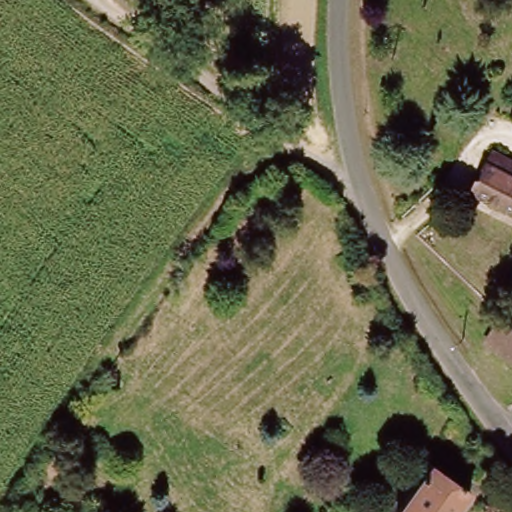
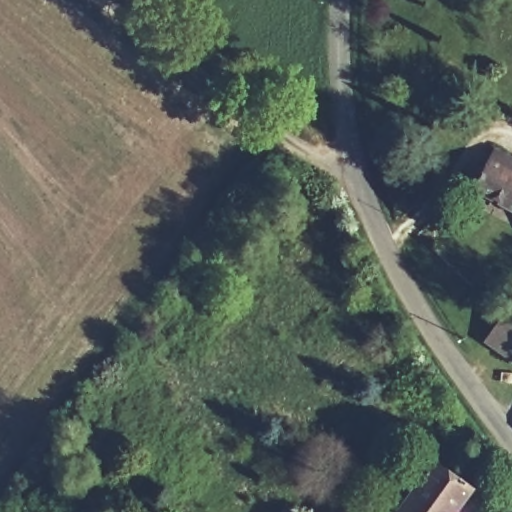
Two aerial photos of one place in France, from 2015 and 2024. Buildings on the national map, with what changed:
unchanged [(494,154),(512,163),(512,170),(510,174),(512,175),(512,212),(474,193),(494,154)]
unchanged [(512,364),(485,350),(498,323),(512,331),(512,364)]
unchanged [(468,492),(453,512),(399,512),(434,466),(468,492)]

